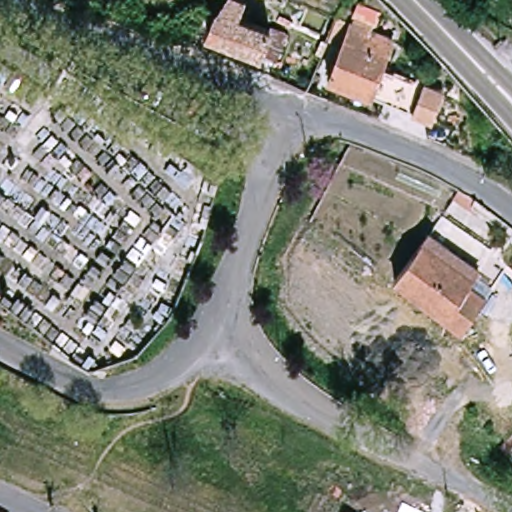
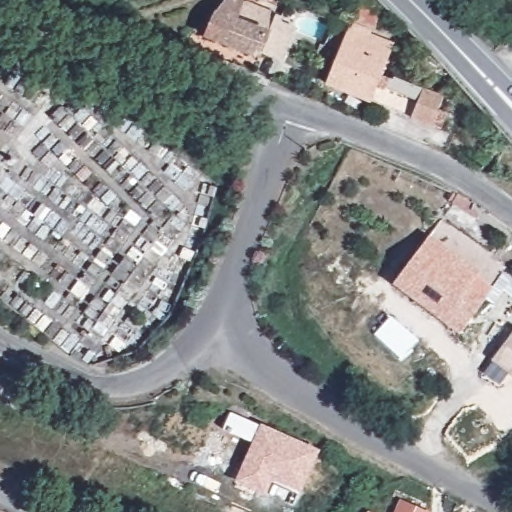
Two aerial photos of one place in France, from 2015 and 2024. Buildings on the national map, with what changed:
unchanged [(224,0),(243,0),(245,1),(239,18),(282,37),(273,59),(208,35),(219,7),(224,0)]
unchanged [(403,107),(383,100),(377,97),(369,94),(326,77),(348,24),(390,44),(381,62),(378,71),(386,74),(390,75),(392,71),(394,72),(419,82),(441,91),(431,119),(403,107)]
unchanged [(477,321),(464,337),(448,324),(397,287),(424,251),(432,239),(480,272),(475,278),(493,290),(484,303),(471,293),(488,306),(477,321)]
new [(512,376),(493,361),(512,334),(512,376)]
new [(273,481),(265,496),(233,483),(251,443),(221,431),(229,413),(260,426),(261,423),(321,451),(301,493),(273,481)]
unchanged [(512,438),(512,449),(506,444),(512,438)]
new [(429,512),(395,512),(400,500),(429,512)]
unchanged [(0,512),(0,509),(6,512),(0,512)]
new [(372,512),(367,512),(368,510),(372,512)]

